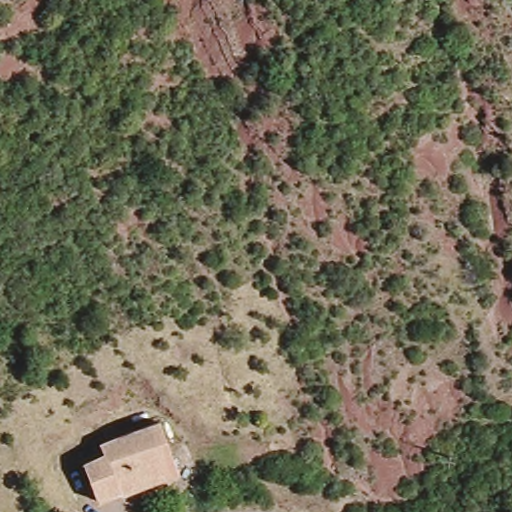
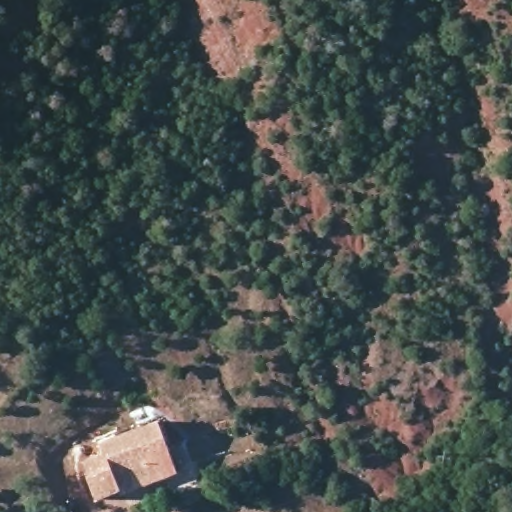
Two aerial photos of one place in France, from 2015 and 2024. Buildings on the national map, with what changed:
unchanged [(118,487),(116,482),(94,488),(82,450),(108,444),(104,433),(111,430),(157,418),(168,416),(182,466),(125,485),(118,487)]

